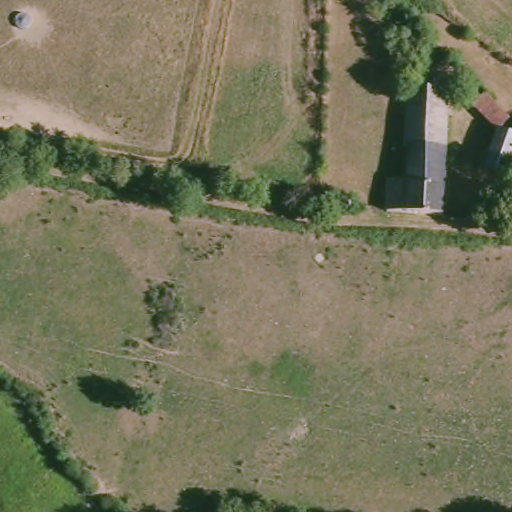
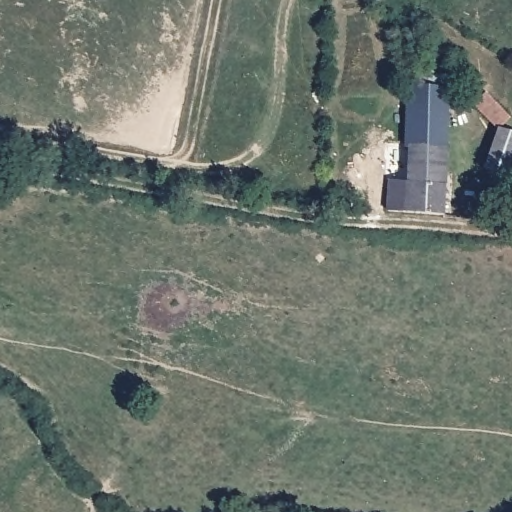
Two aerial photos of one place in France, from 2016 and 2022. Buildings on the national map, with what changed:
unchanged [(390,181),(411,184),(412,149),(408,148),(411,91),(411,90),(455,91),(450,215),(390,212),(390,181)]
unchanged [(508,127),(512,128),(512,173),(491,166),(505,129),(480,101),(490,91),(512,115),(512,120),(508,127)]

